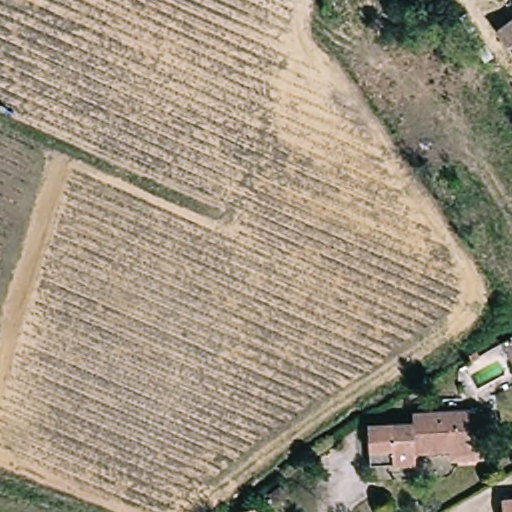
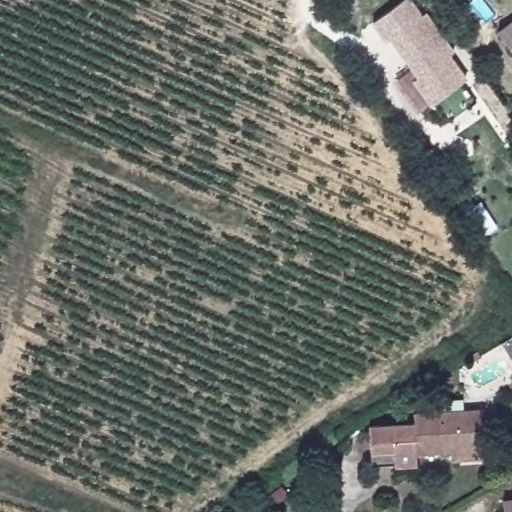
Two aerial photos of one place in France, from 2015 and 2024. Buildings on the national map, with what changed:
new [(411,0),(421,14),(425,11),(453,50),(448,53),(465,77),(431,101),(414,76),(418,73),(391,35),(387,37),(373,18),(399,0),(411,0)]
unchanged [(512,15),(512,32),(504,20),(512,15)]
unchanged [(455,464),(455,450),(418,450),(418,460),(373,460),(370,460),(370,456),(370,423),(418,423),(418,411),(482,411),(482,450),(482,464),(455,464)]
unchanged [(502,500),(512,500),(512,512),(502,512),(502,500)]
unchanged [(238,511),(241,512),(237,512),(238,511)]

